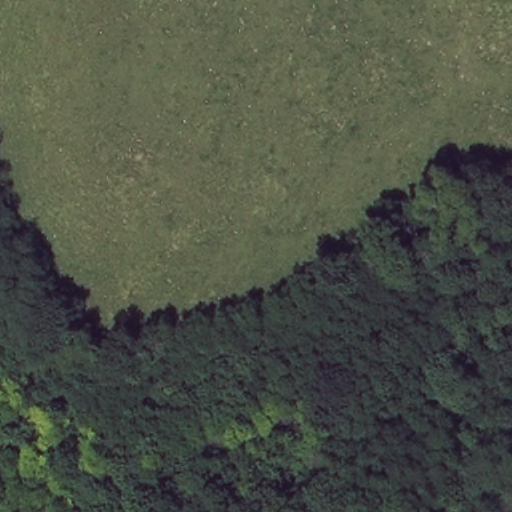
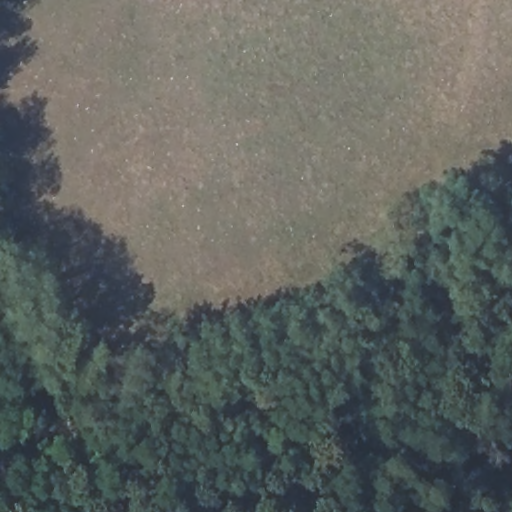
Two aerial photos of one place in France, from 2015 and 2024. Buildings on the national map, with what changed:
[]

